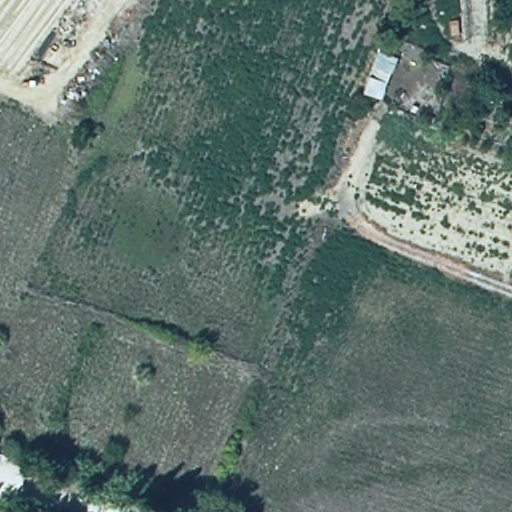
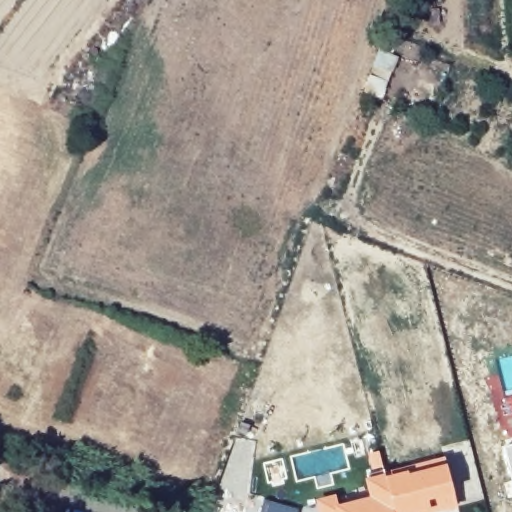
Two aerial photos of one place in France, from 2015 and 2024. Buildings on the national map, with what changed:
new [(362,93),(368,76),(380,50),(397,57),(387,82),(382,100),(362,93)]
demolished [(382,100),(362,93),(368,76),(387,82),(382,100)]
new [(314,499),(336,493),(340,505),(370,497),(365,478),(445,456),(459,507),(460,512),(318,512),(314,499)]
new [(262,497),(300,510),(299,512),(258,512),(262,497)]

